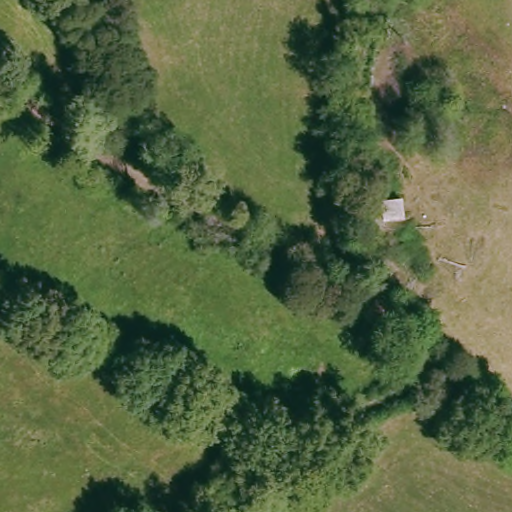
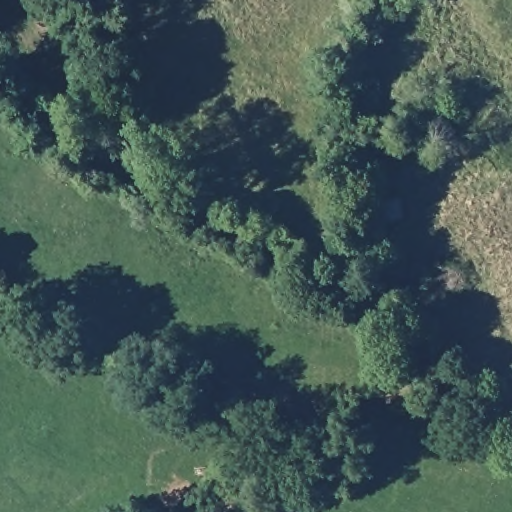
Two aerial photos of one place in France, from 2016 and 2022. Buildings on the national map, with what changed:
unchanged [(405,197),(410,217),(382,221),(380,199),(405,197)]

